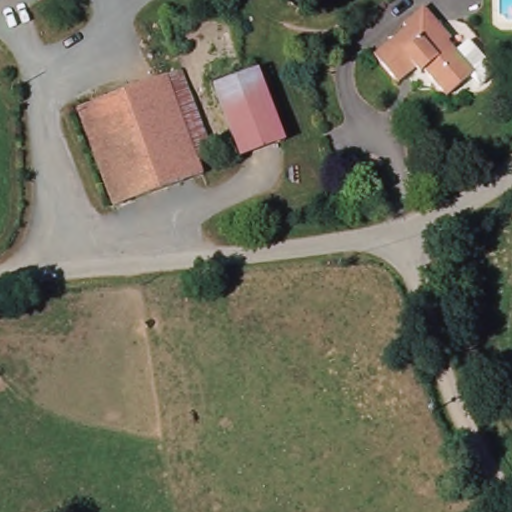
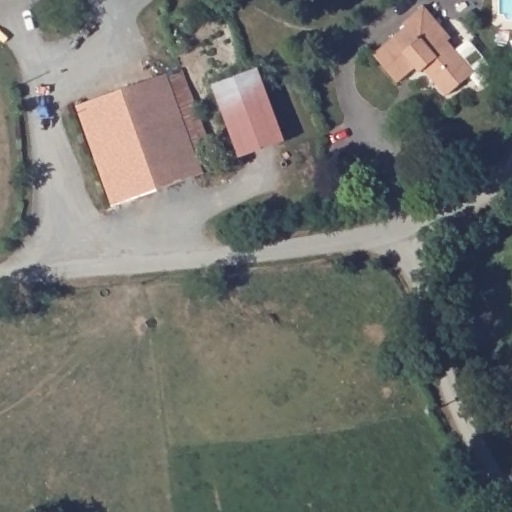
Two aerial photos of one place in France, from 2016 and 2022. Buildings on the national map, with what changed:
unchanged [(407,31),(404,25),(426,6),(453,41),(450,43),(475,77),(447,100),(421,67),(398,85),(376,56),(407,31)]
unchanged [(255,64),(279,134),(234,150),(208,80),(255,64)]
unchanged [(180,70),(211,150),(195,156),(182,121),(165,74),(180,70)]
unchanged [(165,74),(182,121),(161,130),(145,136),(96,155),(78,106),(165,74)]
unchanged [(145,136),(161,130),(182,121),(195,156),(201,172),(115,205),(96,155),(145,136)]

